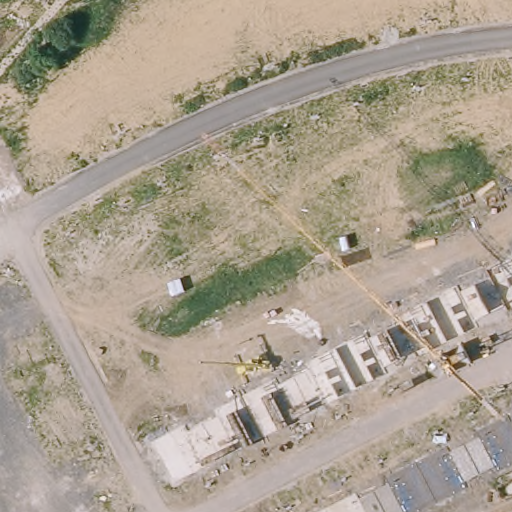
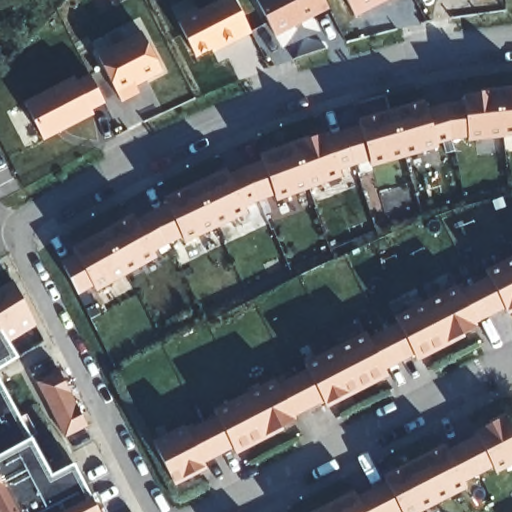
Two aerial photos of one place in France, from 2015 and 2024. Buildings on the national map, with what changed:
new [(234,0),(253,38),(197,64),(179,23),(223,0),(234,0)]
new [(275,37),(258,0),(324,0),(330,11),(275,37)]
new [(348,0),(387,0),(355,16),(348,0)]
new [(142,35),(160,74),(135,87),(139,95),(122,104),(98,56),(142,35)]
new [(73,80),(76,84),(88,77),(102,106),(90,113),(92,119),(43,142),(25,104),(73,80)]
new [(74,249),(133,214),(137,221),(152,212),(168,205),(165,199),(227,169),(230,175),(246,168),(263,161),(260,155),(324,131),(327,137),(343,131),(360,126),(358,120),(423,101),(426,110),(444,104),(462,102),(461,92),(512,86),(512,133),(467,139),(467,136),(451,136),(435,141),(437,145),(371,164),(370,158),(353,163),(338,169),(340,175),(277,198),(274,192),(244,205),(247,211),(185,241),(182,235),(168,242),(154,250),(157,256),(97,289),(94,284),(80,293),(65,263),(78,255),(74,249)]
unchanged [(190,427),(220,411),(217,405),(277,373),(281,379),(310,363),(307,357),(367,324),(371,330),(400,315),(397,309),(458,276),(461,282),(490,266),(487,260),(512,247),(512,300),(510,302),(507,296),(477,312),(480,318),(420,350),(417,343),(387,360),(390,367),(330,399),(326,392),(297,408),(300,415),(239,447),(236,441),(207,456),(210,463),(178,479),(157,438),(187,421),(190,427)]
new [(40,325),(10,341),(18,356),(0,365),(0,288),(15,280),(40,325)]
unchanged [(60,368),(89,423),(67,435),(37,380),(60,368)]
new [(50,469),(74,458),(102,512),(0,512),(0,377),(50,469)]
unchanged [(360,490),(362,496),(392,480),(389,474),(450,442),(453,448),(482,432),(479,426),(510,409),(512,413),(512,462),(501,468),(497,462),(468,477),(472,483),(418,512),(409,512),(407,510),(403,512),(318,512),(360,490)]

